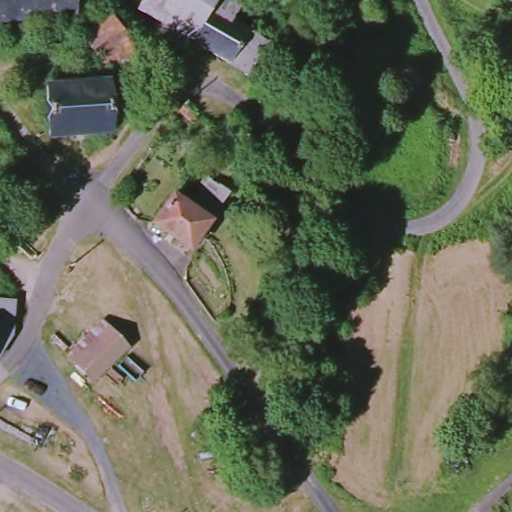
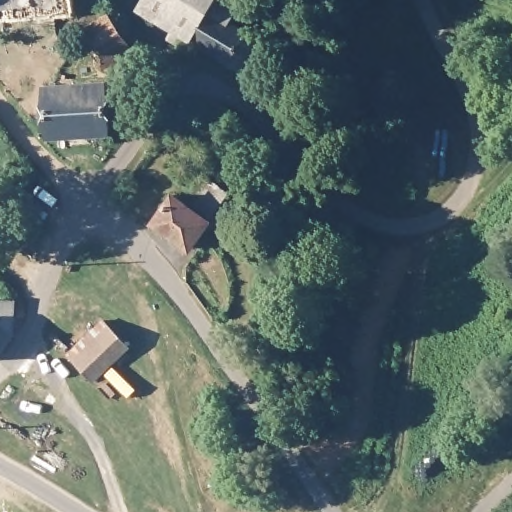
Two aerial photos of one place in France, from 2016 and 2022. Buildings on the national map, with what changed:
unchanged [(0,17),(0,0),(68,0),(70,12),(0,17)]
unchanged [(265,49),(246,80),(142,15),(151,0),(244,0),(251,5),(237,28),(265,49)]
unchanged [(125,83),(114,66),(110,69),(85,36),(110,16),(135,51),(147,67),(125,83)]
unchanged [(110,132),(52,137),(49,88),(105,84),(110,132)]
unchanged [(155,226),(172,197),(185,206),(204,176),(232,192),(197,251),(155,226)]
unchanged [(0,305),(11,305),(12,329),(0,348),(0,305)]
unchanged [(134,351),(97,386),(70,357),(105,322),(134,351)]

